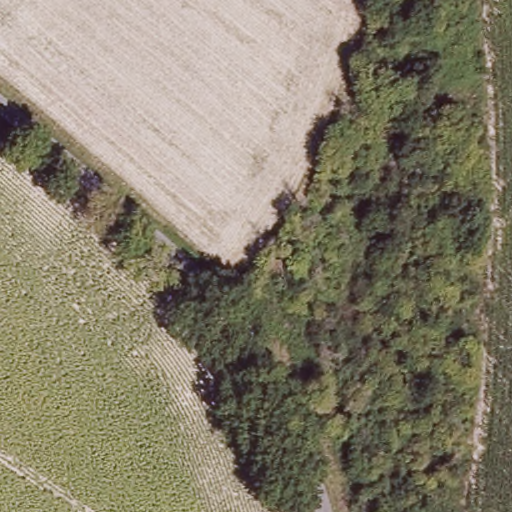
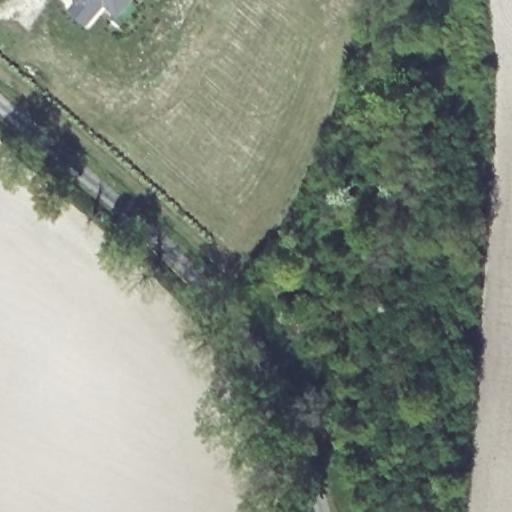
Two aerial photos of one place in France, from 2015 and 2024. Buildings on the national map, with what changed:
new [(121,13),(109,3),(89,24),(70,8),(78,0),(133,0),(121,13)]

